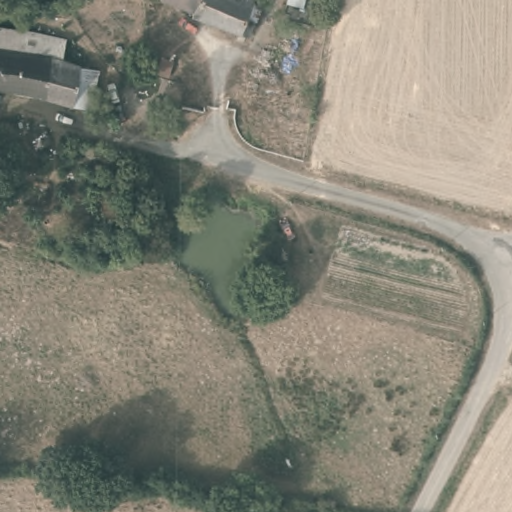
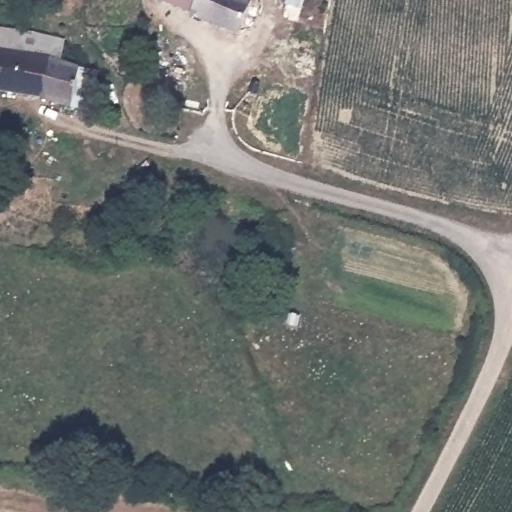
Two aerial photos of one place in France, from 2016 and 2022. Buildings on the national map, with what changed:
unchanged [(191,2),(184,0),(192,0),(191,2)]
unchanged [(191,2),(192,0),(255,0),(243,32),(189,9),(191,2)]
unchanged [(0,87),(0,23),(67,36),(62,61),(19,52),(12,88),(0,87)]
unchanged [(19,52),(62,61),(77,64),(67,102),(41,93),(12,88),(19,52)]

